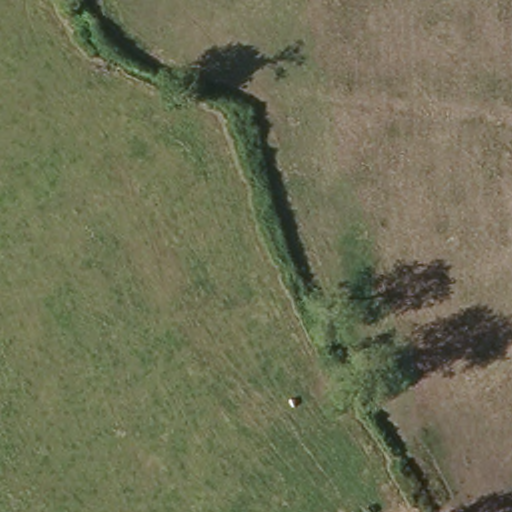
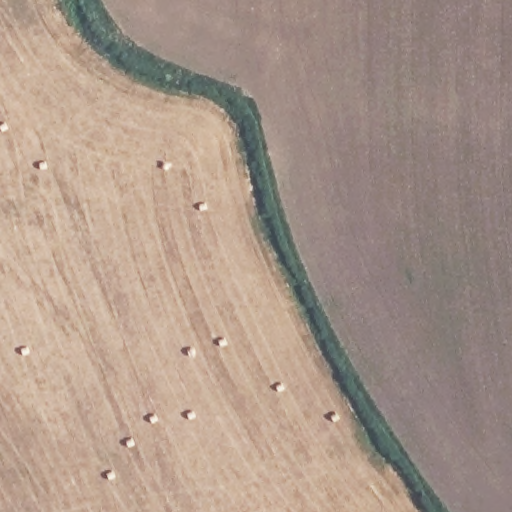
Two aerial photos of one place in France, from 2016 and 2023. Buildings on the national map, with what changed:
[]

